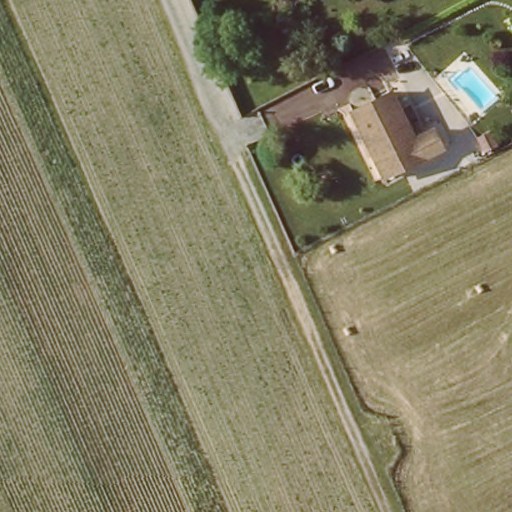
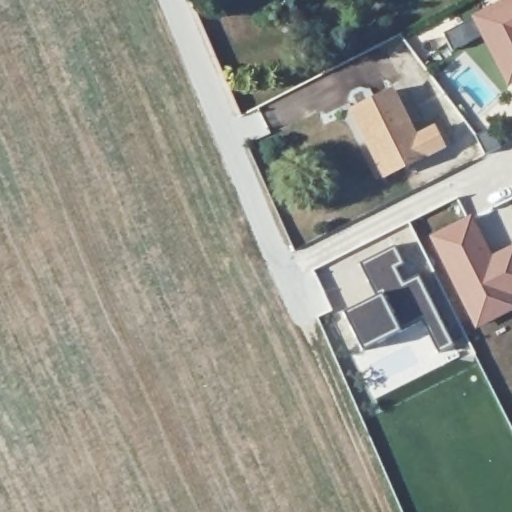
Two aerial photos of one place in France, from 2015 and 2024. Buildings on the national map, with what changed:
new [(443,33),(470,18),(469,15),(496,0),(512,0),(512,85),(506,88),(480,37),(454,51),(443,33)]
unchanged [(365,143),(349,110),(390,90),(398,109),(407,105),(411,115),(415,122),(407,125),(412,137),(432,129),(440,146),(387,173),(381,176),(365,143)]
unchanged [(481,138),(492,132),(499,145),(487,151),(481,138)]
new [(471,214),(492,255),(512,244),(512,311),(475,329),(428,236),(471,214)]
new [(393,245),(403,266),(397,269),(405,284),(383,295),(381,296),(380,294),(374,296),(357,262),(393,245)]
new [(348,309),(374,296),(380,294),(381,296),(383,295),(400,331),(361,351),(342,312),(348,309)]

